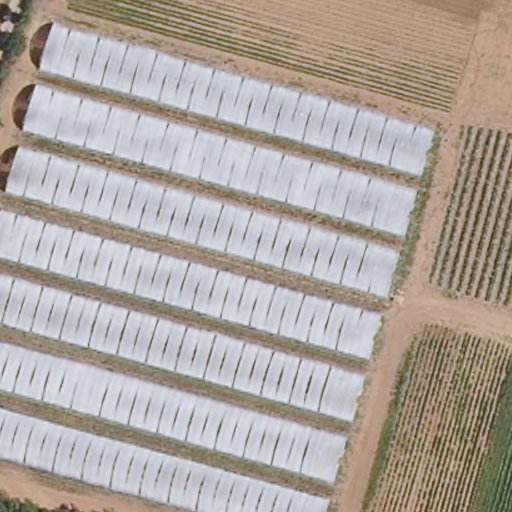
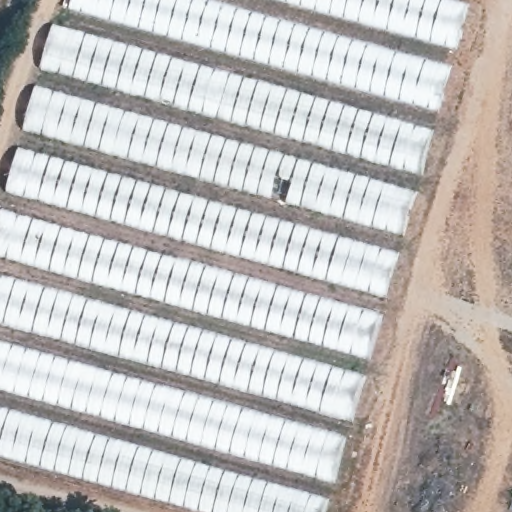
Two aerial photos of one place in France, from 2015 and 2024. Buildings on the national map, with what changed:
new [(439,111),(68,7),(71,0),(211,0),(451,67),(439,111)]
new [(456,48),(282,0),(449,0),(468,5),(456,48)]
unchanged [(322,512),(231,512),(0,446),(0,212),(53,25),(432,130),(322,512)]

